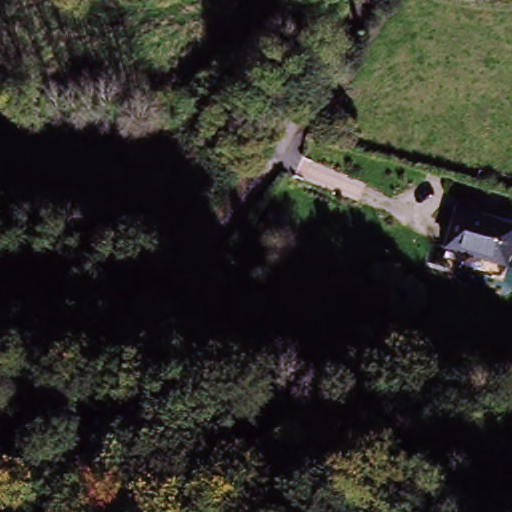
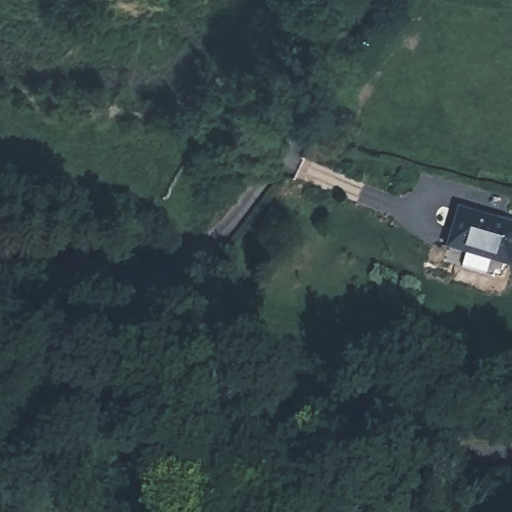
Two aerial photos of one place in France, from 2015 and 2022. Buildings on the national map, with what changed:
unchanged [(504,276),(444,255),(457,210),(512,231),(512,249),(504,276)]

